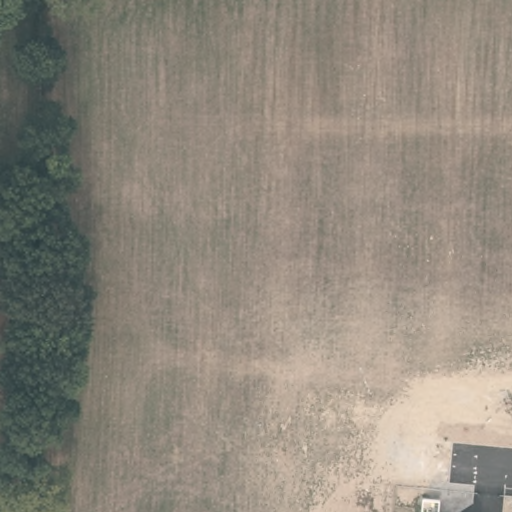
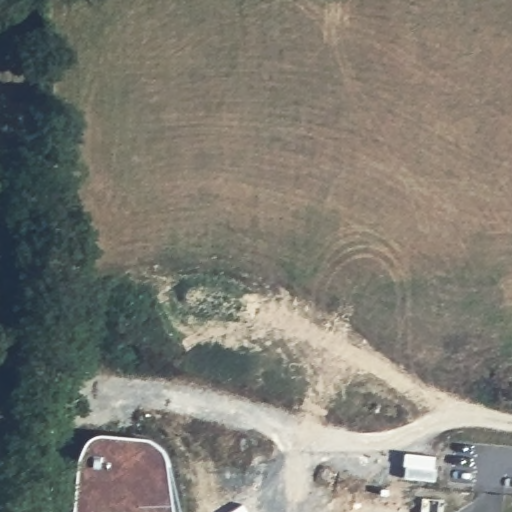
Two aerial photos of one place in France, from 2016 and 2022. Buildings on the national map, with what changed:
new [(125,461),(130,452),(137,447),(149,445),(159,450),(165,456),(167,463),(173,512),(73,512),(77,465),(82,454),(90,448),(99,447),(107,451),(111,459),(112,468),(111,480),(125,480),(125,461)]

